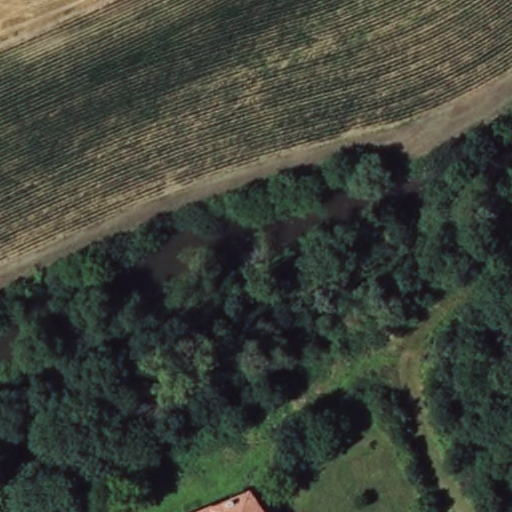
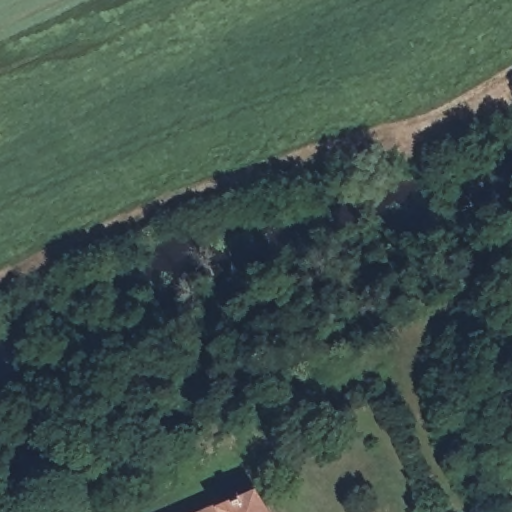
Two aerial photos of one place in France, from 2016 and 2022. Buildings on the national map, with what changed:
unchanged [(259,512),(206,512),(236,500),(248,495),(259,512)]

